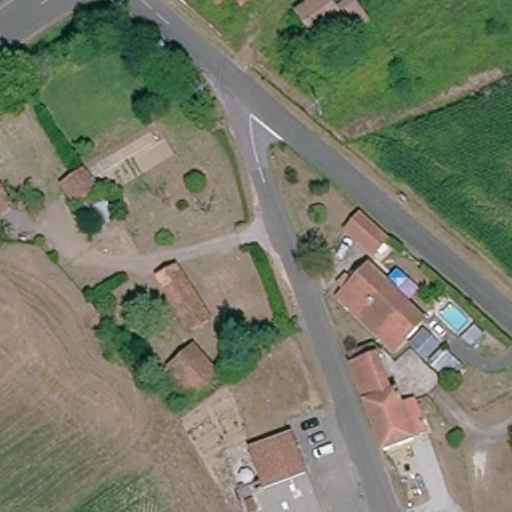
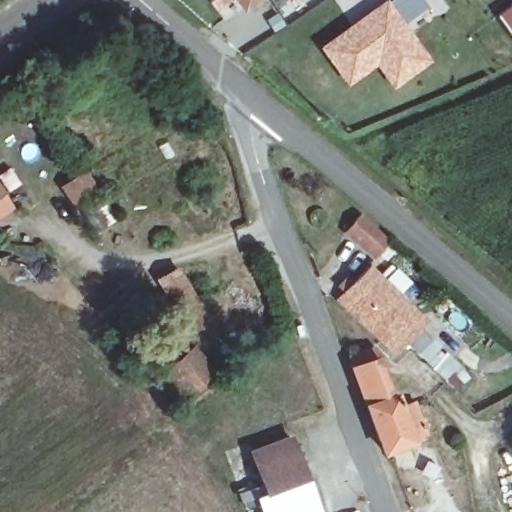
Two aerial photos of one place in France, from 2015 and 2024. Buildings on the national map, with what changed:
unchanged [(221,10),(214,0),(236,0),(221,10)]
unchanged [(250,8),(244,0),(262,0),(250,8)]
demolished [(305,17),(328,0),(360,0),(373,17),(328,49),(314,29),(305,17)]
new [(431,8),(407,24),(433,59),(393,89),(376,66),(347,86),(318,46),(384,0),(425,0),(431,8)]
new [(512,3),(512,35),(497,13),(512,3)]
unchanged [(77,173),(90,192),(73,204),(60,185),(77,173)]
unchanged [(0,215),(0,186),(13,205),(0,215)]
unchanged [(90,201),(106,222),(94,231),(79,210),(90,201)]
unchanged [(352,220),(372,237),(360,252),(340,234),(352,220)]
unchanged [(366,270),(423,320),(396,351),(339,301),(366,270)]
unchanged [(183,271),(214,318),(195,330),(165,283),(183,271)]
unchanged [(378,346),(391,357),(380,359),(392,394),(398,392),(402,404),(412,401),(423,428),(410,433),(413,439),(385,449),(349,353),(378,346)]
unchanged [(185,349),(209,378),(185,397),(161,368),(185,349)]
demolished [(461,426),(472,447),(429,470),(418,448),(461,426)]
unchanged [(321,512),(267,512),(261,490),(270,487),(258,454),(296,441),(321,512)]

